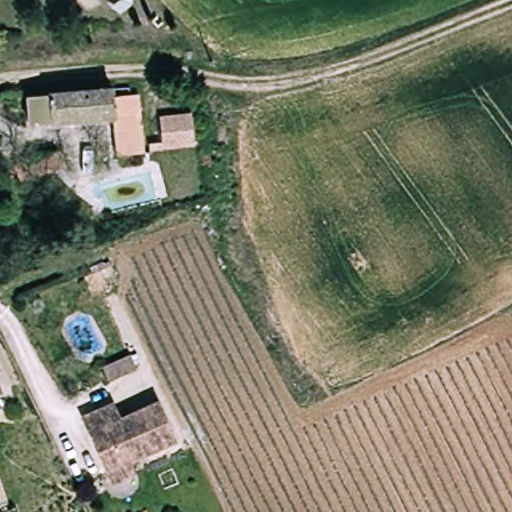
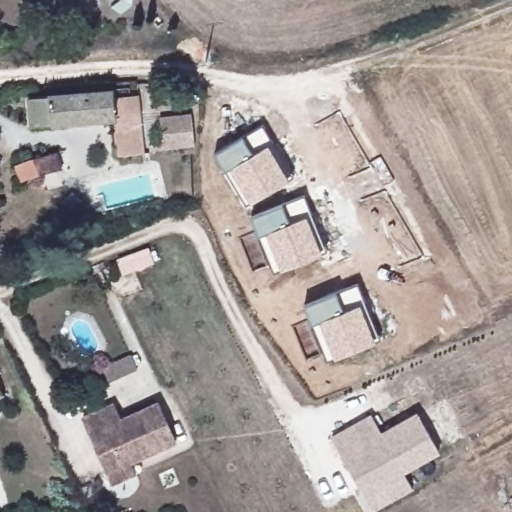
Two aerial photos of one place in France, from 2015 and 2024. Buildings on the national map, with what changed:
unchanged [(150,150),(126,159),(110,88),(130,87),(133,87),(150,150)]
unchanged [(126,159),(108,165),(98,122),(32,128),(28,95),(48,92),(110,88),(126,159)]
unchanged [(193,145),(161,152),(153,120),(185,114),(193,145)]
new [(289,180),(250,204),(247,206),(226,172),(216,152),(243,136),(263,126),(294,177),(289,180)]
unchanged [(70,172),(30,185),(21,166),(63,155),(70,172)]
new [(324,255),(281,271),(276,272),(260,236),(252,216),(283,202),(305,196),(328,252),(324,255)]
new [(381,340),(378,341),(335,358),(334,356),(327,358),(313,323),(306,306),(338,292),(358,283),(381,340)]
unchanged [(108,478),(99,462),(71,412),(103,395),(110,407),(152,383),(172,423),(139,441),(148,456),(108,478)]
new [(383,434),(415,415),(437,450),(364,493),(331,437),(371,416),(383,434)]

